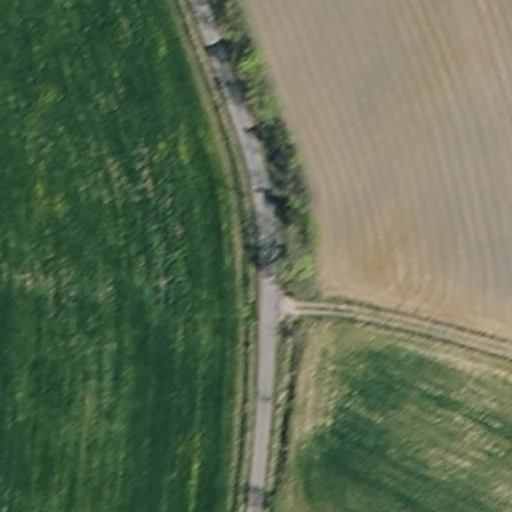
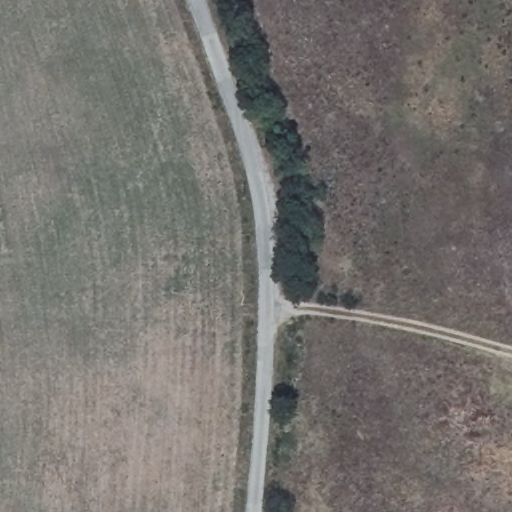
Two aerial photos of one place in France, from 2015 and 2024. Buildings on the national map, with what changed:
[]

